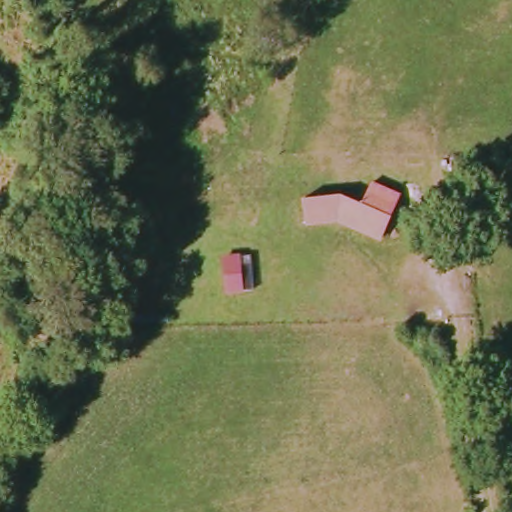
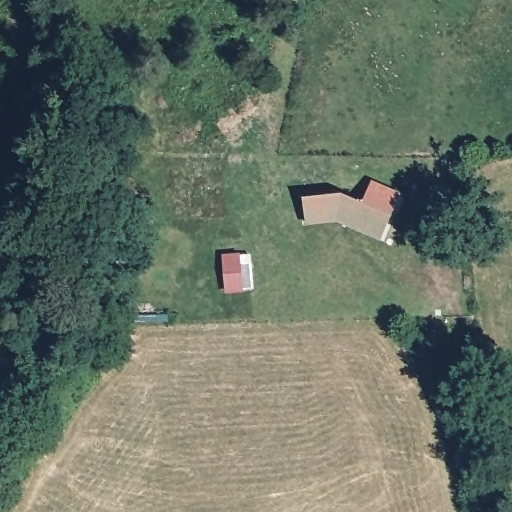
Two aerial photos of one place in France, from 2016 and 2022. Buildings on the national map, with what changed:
unchanged [(390,226),(345,217),(310,226),(305,202),(345,193),(395,201),(390,226)]
unchanged [(225,259),(255,255),(257,294),(227,297),(225,259)]

